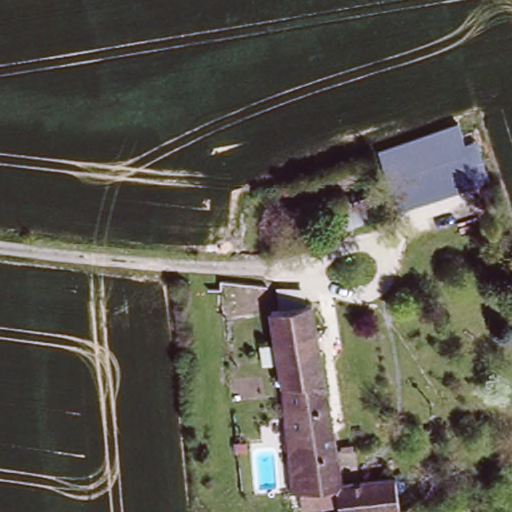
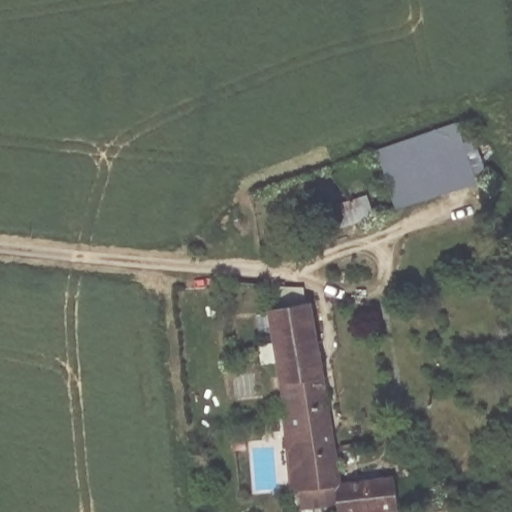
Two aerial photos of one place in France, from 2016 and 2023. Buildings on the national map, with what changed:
unchanged [(467,186),(474,204),(425,221),(419,202),(418,201),(407,164),(400,145),(448,130),(453,146),(468,141),(480,174),(482,179),(467,184),(467,186)]
unchanged [(388,211),(375,175),(407,164),(418,201),(388,211)]
unchanged [(402,488),(405,512),(310,512),(310,510),(302,511),(291,434),(270,296),(312,290),(343,497),(402,488)]

